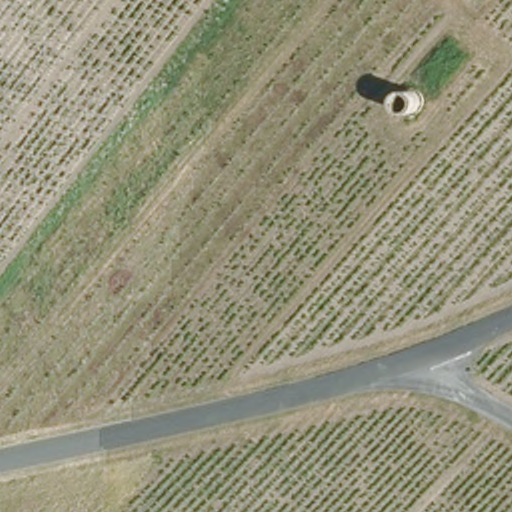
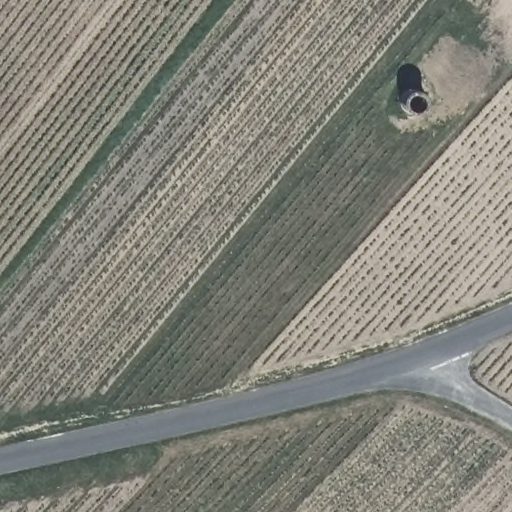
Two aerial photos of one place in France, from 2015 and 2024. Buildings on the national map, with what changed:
unchanged [(413,89),(420,94),(423,99),(422,105),(419,110),(412,112),(407,111),(402,108),(400,103),(400,98),(402,93),(408,90),(413,89)]

